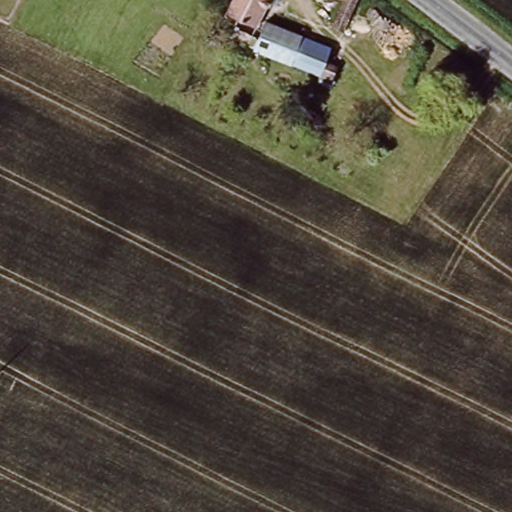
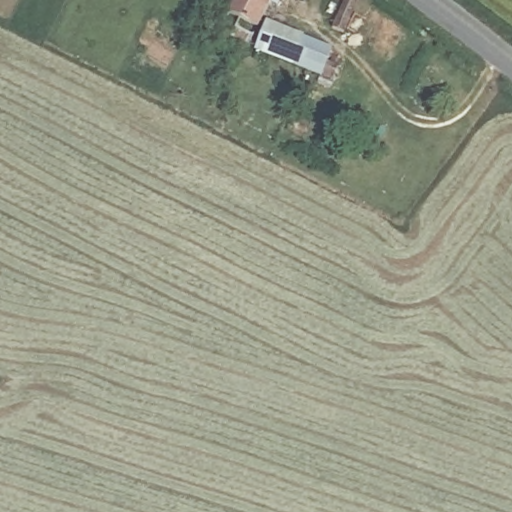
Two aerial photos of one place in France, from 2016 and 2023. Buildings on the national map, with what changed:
unchanged [(264,26),(267,19),(332,47),(326,61),(339,67),(330,87),(317,81),(318,77),(257,51),(259,48),(218,30),(231,0),(269,0),(257,24),(264,26)]
unchanged [(357,1),(337,31),(328,24),(342,3),(337,0),(356,0),(357,1)]

